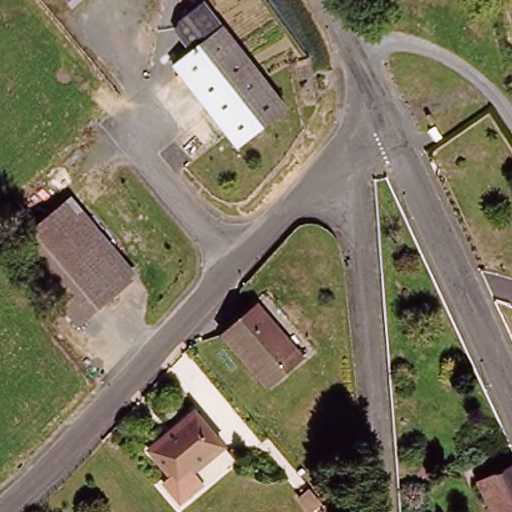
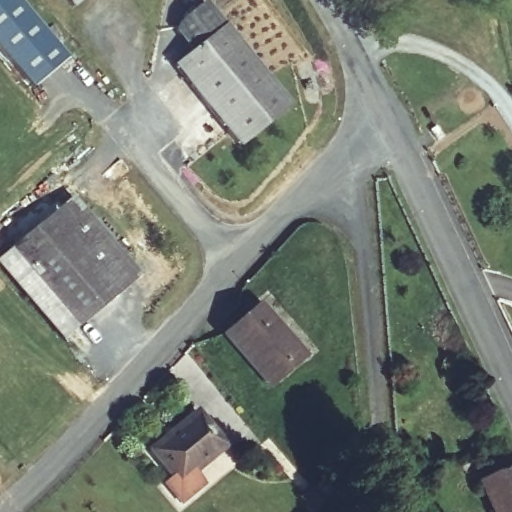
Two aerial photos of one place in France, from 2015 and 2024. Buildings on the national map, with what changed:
new [(0,47),(0,0),(19,0),(65,56),(33,88),(0,47)]
unchanged [(80,0),(73,6),(68,0),(80,0)]
unchanged [(235,146),(170,69),(187,56),(167,31),(200,5),(282,110),(235,146)]
unchanged [(80,322),(13,242),(72,197),(137,275),(80,322)]
unchanged [(268,387),(223,336),(257,306),(302,358),(268,387)]
unchanged [(173,479),(152,452),(198,412),(227,448),(197,473),(205,487),(183,505),(166,485),(173,479)]
unchanged [(512,468),(512,512),(497,512),(482,481),(512,468)]

